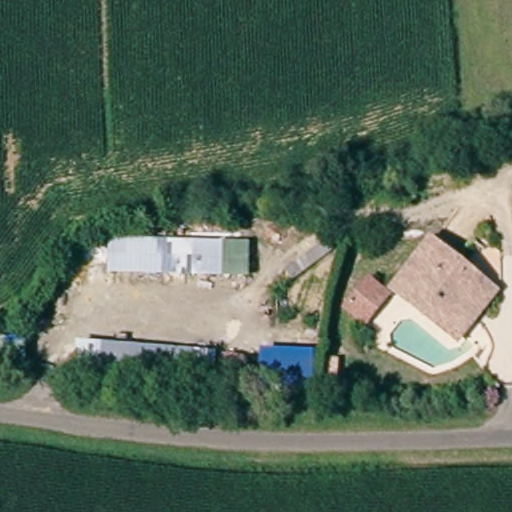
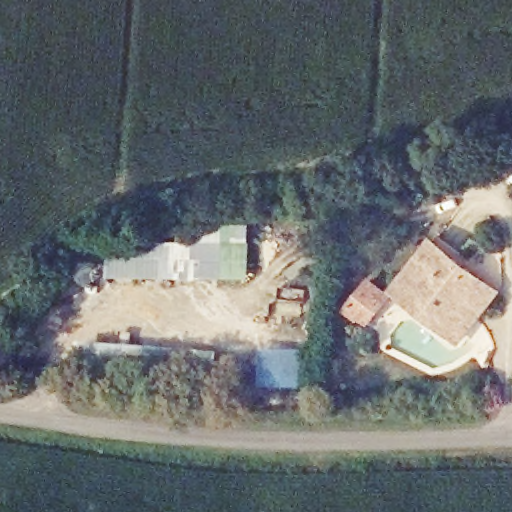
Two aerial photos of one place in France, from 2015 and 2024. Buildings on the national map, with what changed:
unchanged [(114,241),(247,244),(246,275),(112,273),(114,241)]
unchanged [(508,296),(493,314),(477,301),(458,323),(412,283),(447,243),(508,296)]
unchanged [(398,299),(375,325),(356,309),(380,282),(398,299)]
unchanged [(465,346),(403,293),(412,283),(458,323),(477,301),(493,314),(465,346)]
unchanged [(104,360),(236,370),(234,395),(102,385),(104,360)]
unchanged [(287,365),(321,367),(340,368),(338,393),(315,392),(285,390),(287,365)]

